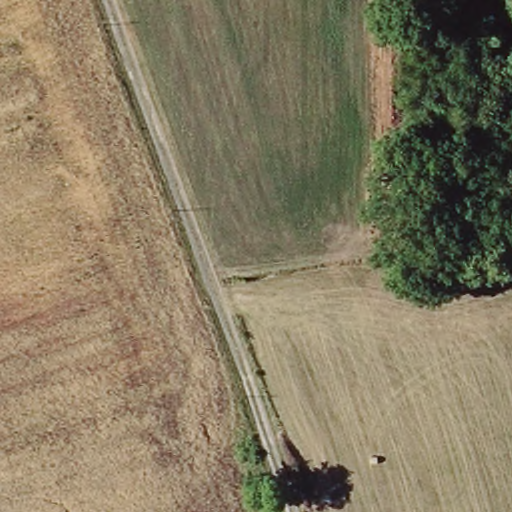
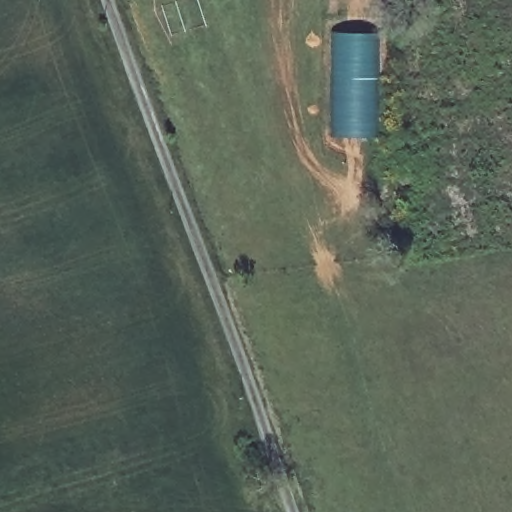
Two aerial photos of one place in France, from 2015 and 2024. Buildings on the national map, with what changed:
new [(332,34),(375,35),(370,137),(345,137),(345,133),(333,133),(332,34)]

